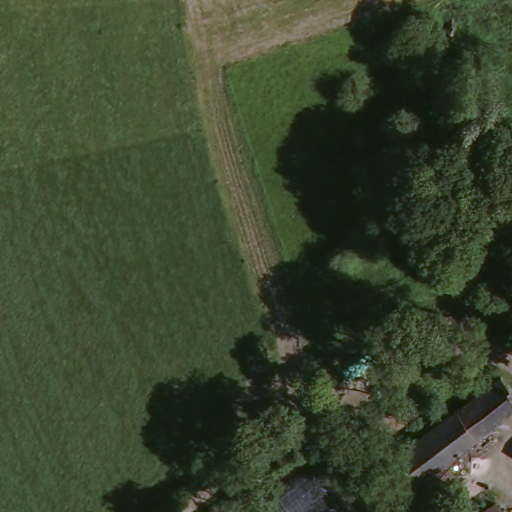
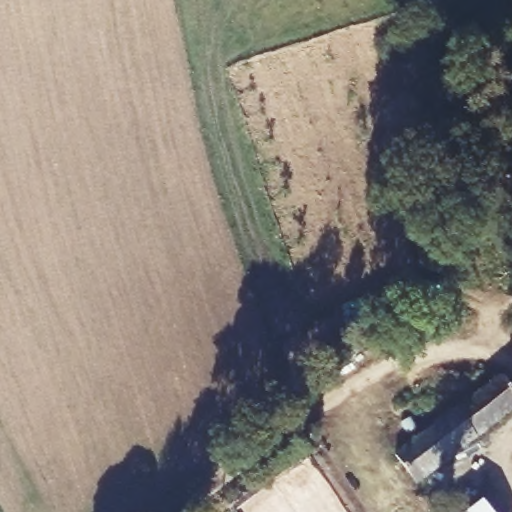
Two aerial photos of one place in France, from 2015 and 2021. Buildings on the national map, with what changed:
unchanged [(460,411),(500,378),(512,393),(512,409),(415,484),(396,457),(458,408),(460,411)]
unchanged [(508,512),(485,512),(500,501),(508,512)]

